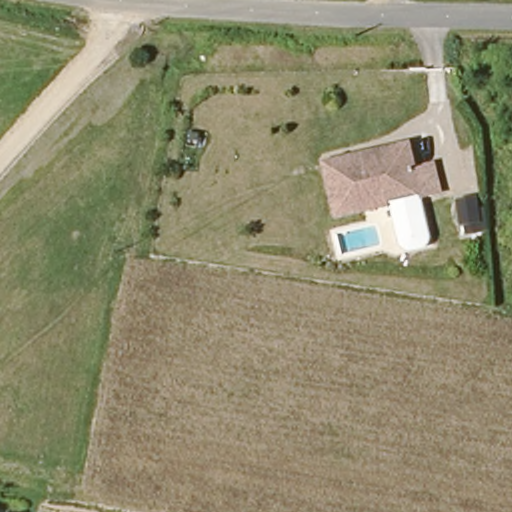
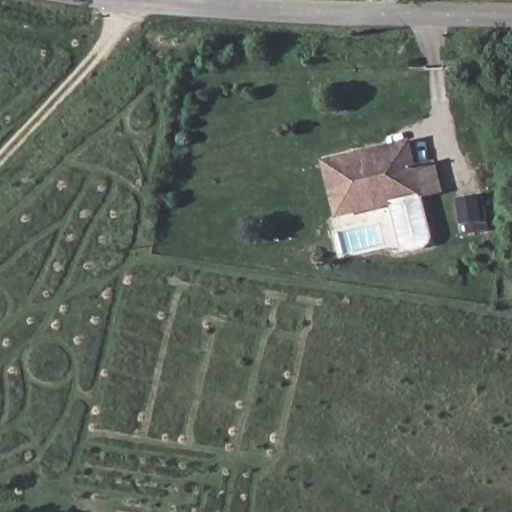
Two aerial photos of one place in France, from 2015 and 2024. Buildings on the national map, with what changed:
unchanged [(338,219),(327,166),(366,158),(411,147),(414,161),(423,200),(338,219)]

